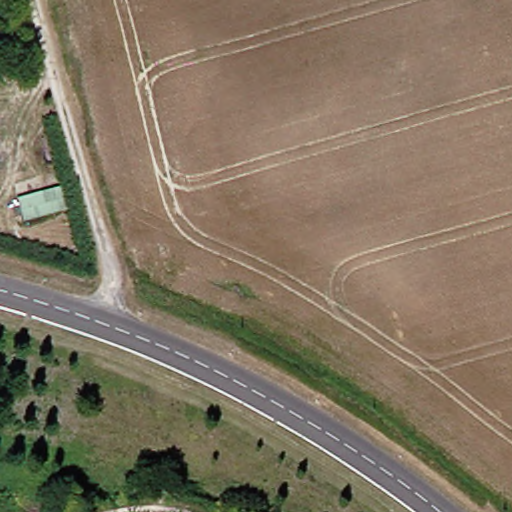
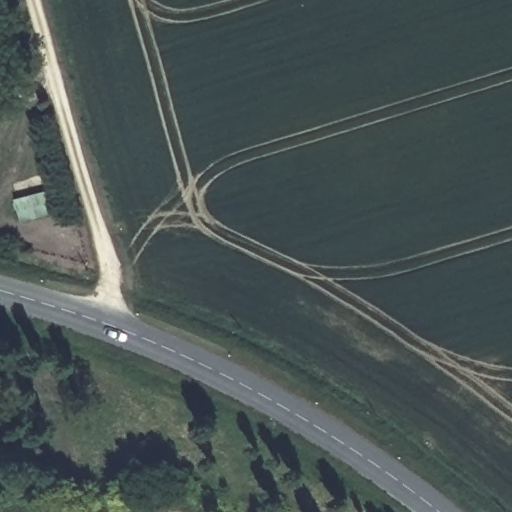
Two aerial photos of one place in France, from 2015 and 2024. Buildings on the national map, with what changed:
unchanged [(28,219),(24,200),(53,189),(59,208),(28,219)]

